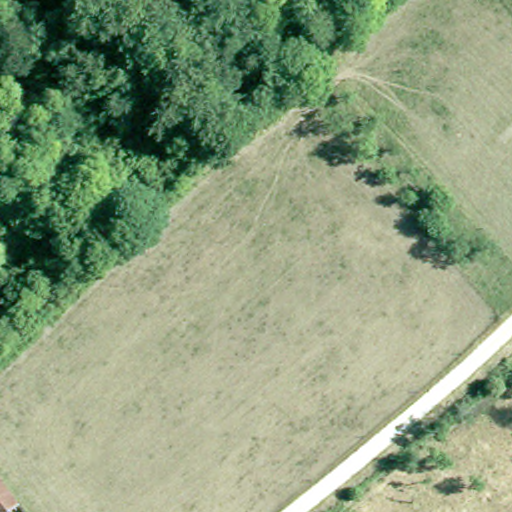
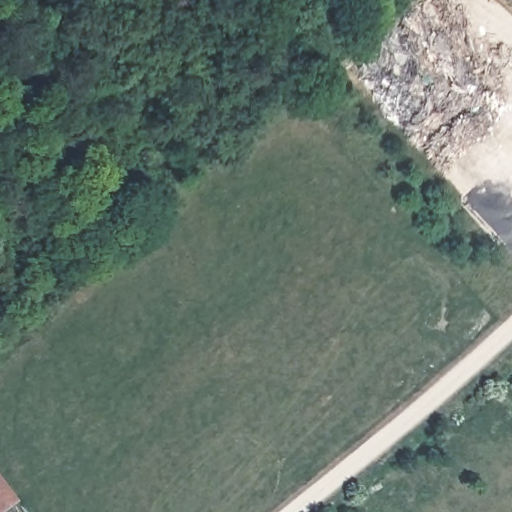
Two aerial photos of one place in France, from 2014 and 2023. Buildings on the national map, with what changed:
unchanged [(15,502),(0,510),(0,480),(8,492),(15,502)]

